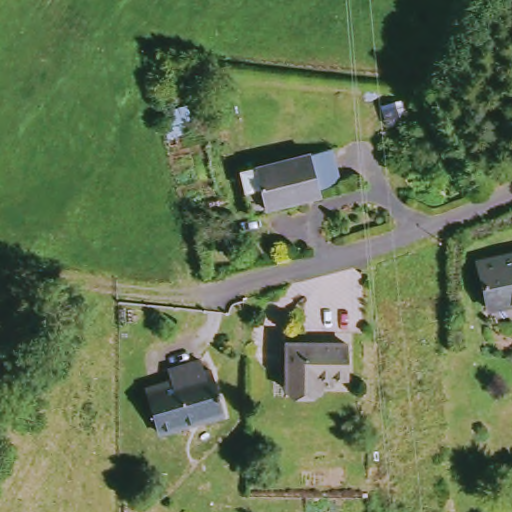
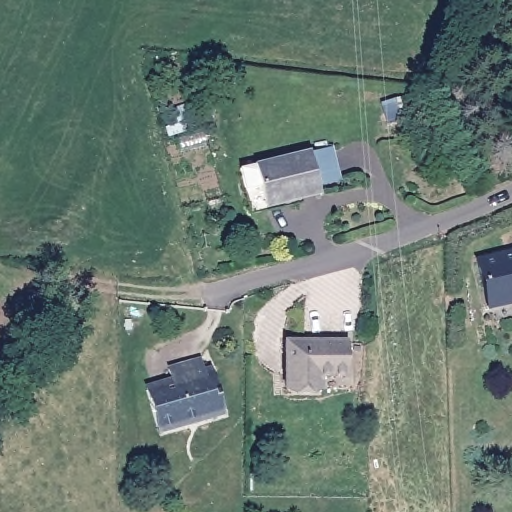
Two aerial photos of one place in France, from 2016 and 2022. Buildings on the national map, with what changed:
unchanged [(264,210),(250,213),(241,175),(335,155),(342,189),(317,195),(319,201),(266,213),(264,210)]
unchanged [(485,265),(512,258),(512,305),(492,310),(485,265)]
unchanged [(299,343),(357,347),(357,377),(327,376),(325,399),(298,397),(299,343)]
unchanged [(149,390),(175,382),(172,371),(204,362),(208,374),(215,371),(227,413),(162,431),(149,390)]

